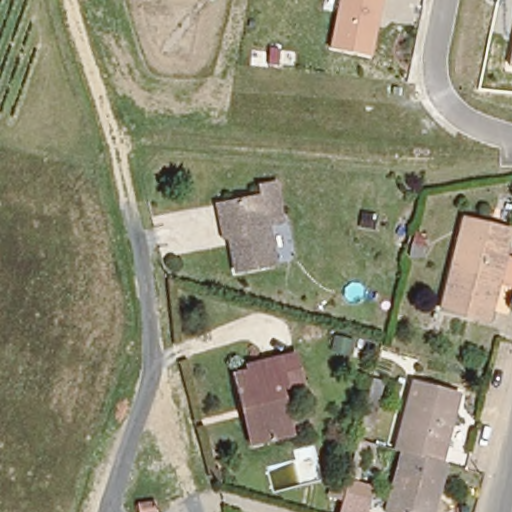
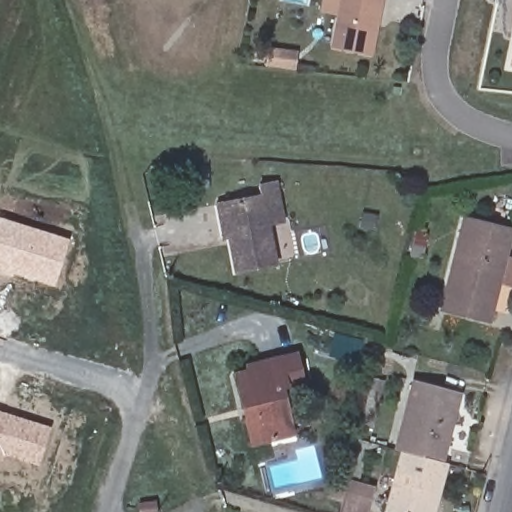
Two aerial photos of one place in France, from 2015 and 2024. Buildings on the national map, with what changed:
unchanged [(340,0),(383,0),(372,56),(330,49),(340,0)]
unchanged [(508,66),(512,45),(512,67),(508,66)]
unchanged [(285,216),(268,220),(276,260),(238,268),(231,235),(225,236),(217,204),(230,201),(262,195),(260,182),(277,179),(285,216)]
unchanged [(511,286),(496,283),(486,321),(440,310),(451,260),(462,214),(510,225),(502,256),(512,259),(512,282),(511,286)]
new [(12,272),(11,276),(0,273),(0,217),(69,239),(54,285),(12,272)]
unchanged [(245,406),(238,375),(250,371),(249,363),(282,355),(298,352),(305,381),(289,385),(283,386),(294,433),(262,441),(255,443),(245,406)]
unchanged [(400,450),(395,448),(411,381),(453,392),(461,394),(451,433),(445,461),(400,450)]
new [(38,465),(2,454),(0,461),(0,411),(50,427),(38,465)]
unchanged [(385,511),(400,450),(445,461),(450,462),(442,492),(437,512),(386,512),(385,511)]
unchanged [(348,473),(372,480),(365,512),(340,512),(348,473)]
unchanged [(140,501),(155,498),(156,508),(142,511),(140,501)]

